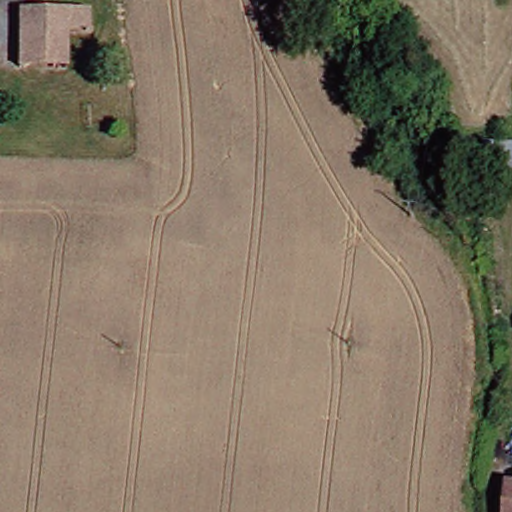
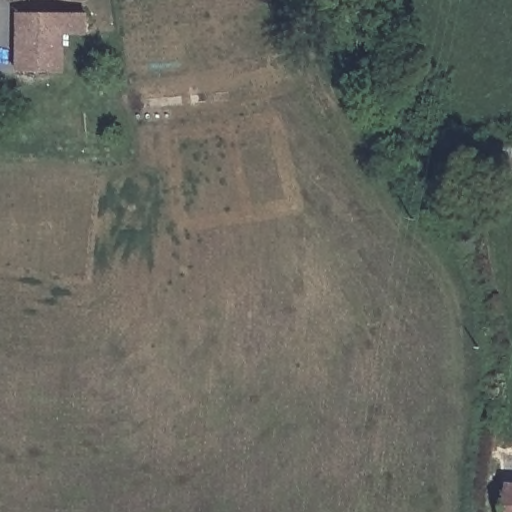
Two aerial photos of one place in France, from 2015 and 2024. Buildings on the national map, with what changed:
unchanged [(71,75),(24,74),(26,12),(73,14),(71,75)]
unchanged [(494,143),(512,144),(512,167),(494,166),(494,143)]
unchanged [(510,486),(512,486),(512,512),(509,512),(510,486)]

